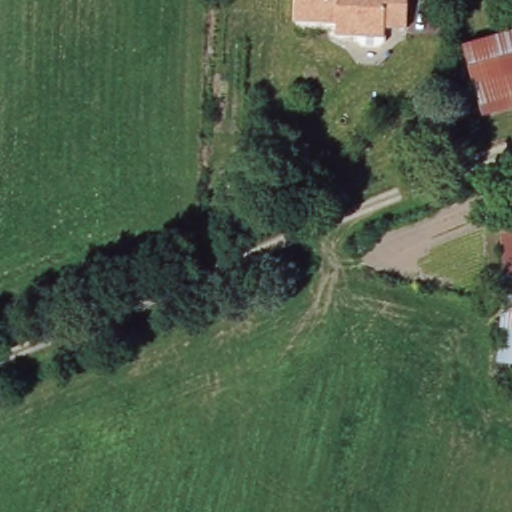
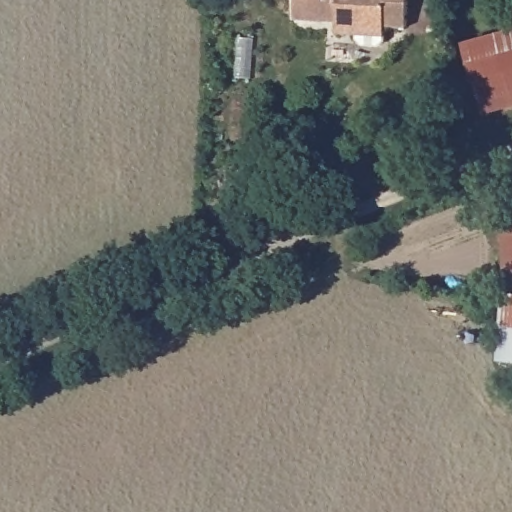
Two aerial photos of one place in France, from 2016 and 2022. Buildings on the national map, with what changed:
unchanged [(412,26),(391,25),(391,40),(385,45),(369,45),(364,39),(364,35),(342,35),(343,23),(297,21),(298,0),(413,0),(412,26)]
unchanged [(473,41),(512,33),(512,111),(488,116),(473,41)]
unchanged [(508,313),(507,295),(501,229),(505,228),(512,227),(512,361),(498,359),(508,313)]

